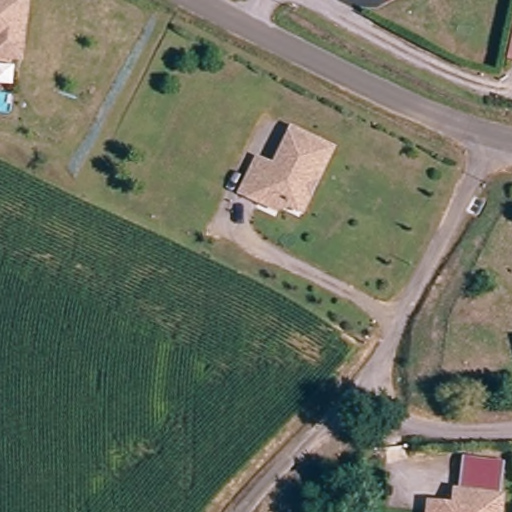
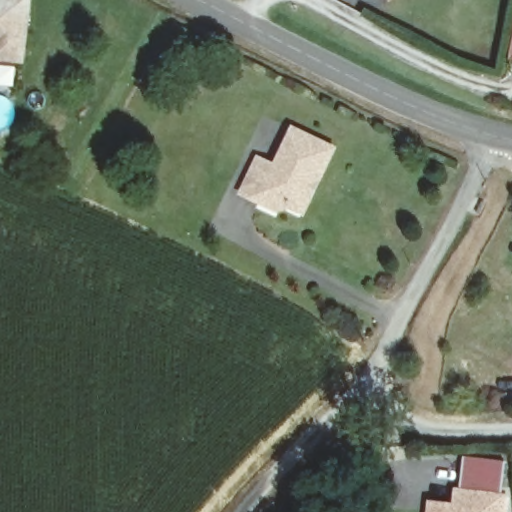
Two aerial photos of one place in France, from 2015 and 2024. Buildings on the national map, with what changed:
unchanged [(0,60),(1,47),(0,47),(0,0),(35,0),(29,62),(0,60)]
unchanged [(261,202),(243,193),(261,160),(277,168),(297,131),(336,151),(318,185),(303,214),(299,212),(290,207),(280,211),(261,202)]
unchanged [(429,503),(449,505),(453,505),(455,489),(458,489),(461,458),(503,461),(500,493),(501,493),(500,512),(428,512),(429,503)]

